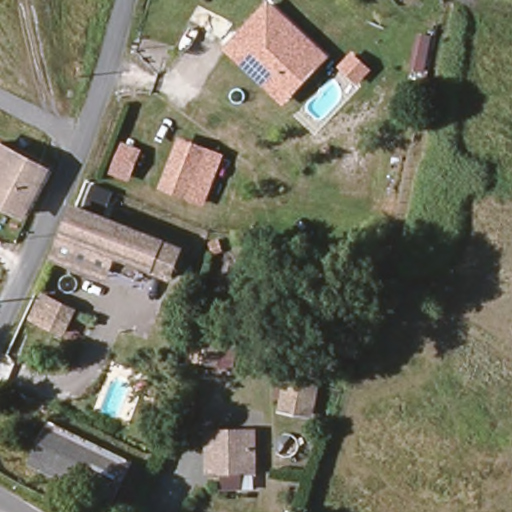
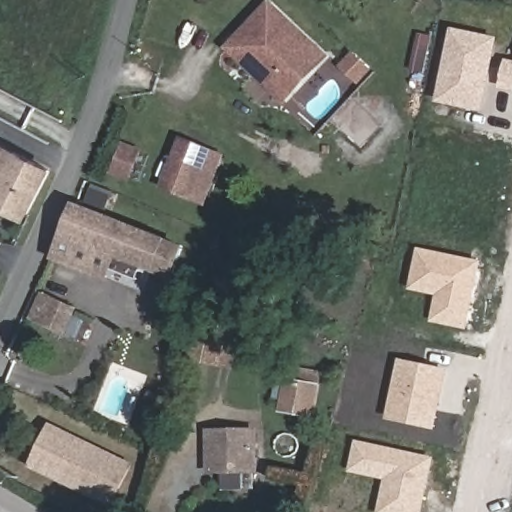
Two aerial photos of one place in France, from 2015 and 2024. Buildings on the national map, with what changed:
unchanged [(273,92),(230,54),(271,7),(313,44),(273,92)]
new [(436,102),(452,28),(498,38),(482,111),(436,102)]
unchanged [(328,55),(286,102),(273,92),(313,44),(328,55)]
unchanged [(357,86),(337,66),(352,51),(372,69),(357,86)]
new [(506,58),(512,59),(512,90),(500,88),(506,58)]
unchanged [(129,183),(107,173),(121,140),(142,149),(129,183)]
unchanged [(169,192),(181,155),(185,140),(208,149),(204,162),(194,197),(169,192)]
unchanged [(14,154),(0,183),(0,148),(14,154)]
unchanged [(23,213),(0,202),(0,183),(14,154),(47,168),(23,213)]
unchanged [(171,279),(152,272),(111,254),(63,234),(72,210),(162,248),(182,256),(171,279)]
unchanged [(111,254),(102,274),(54,257),(63,234),(111,254)]
new [(482,261),(467,329),(432,322),(437,296),(408,289),(418,247),(482,261)]
unchanged [(60,335),(39,325),(47,304),(70,314),(60,335)]
unchanged [(217,368),(187,363),(192,334),(222,340),(217,368)]
new [(449,369),(436,431),(386,419),(399,359),(449,369)]
unchanged [(308,418),(281,417),(286,376),(313,379),(308,418)]
new [(51,425),(132,463),(113,502),(32,464),(51,425)]
unchanged [(226,488),(226,469),(210,469),(210,431),(254,432),(254,470),(245,470),(246,488),(226,488)]
new [(435,458),(423,512),(377,512),(384,479),(348,472),(355,439),(435,458)]

